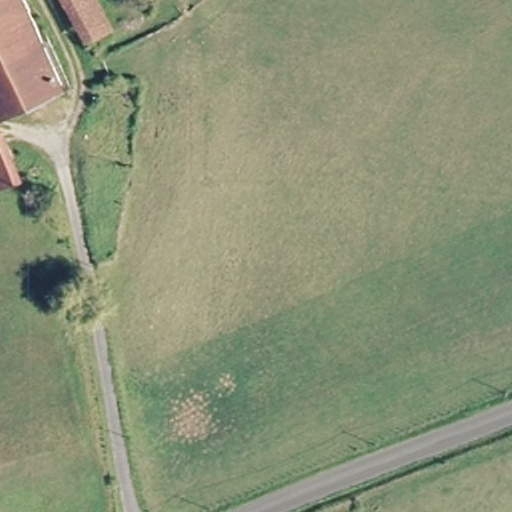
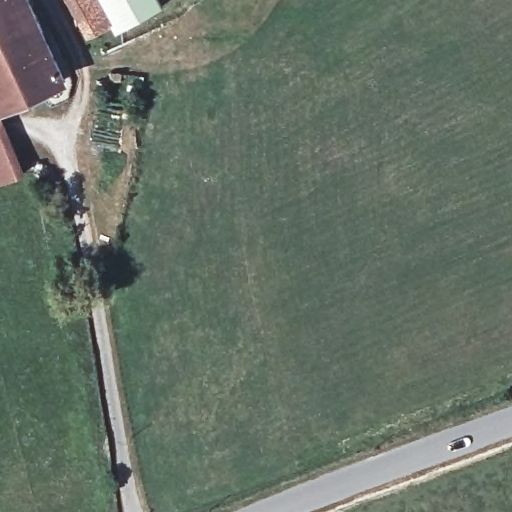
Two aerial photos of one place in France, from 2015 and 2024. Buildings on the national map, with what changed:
unchanged [(0,110),(0,0),(29,0),(63,75),(0,110)]
unchanged [(65,0),(94,0),(103,19),(92,24),(81,29),(65,0)]
new [(117,31),(111,22),(103,19),(94,0),(160,0),(163,5),(117,31)]
unchanged [(129,88),(114,89),(113,78),(129,78),(129,88)]
unchanged [(0,110),(22,170),(0,182),(0,110)]

